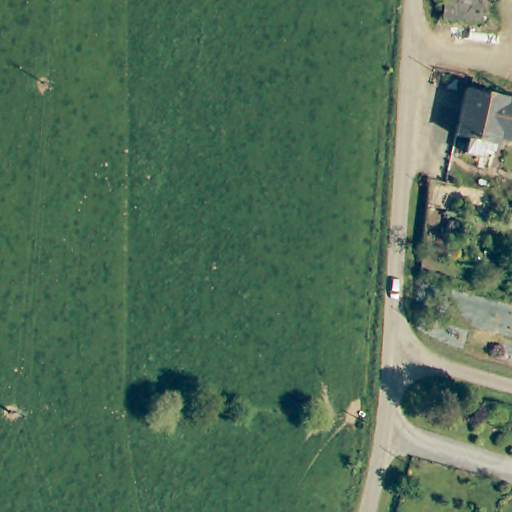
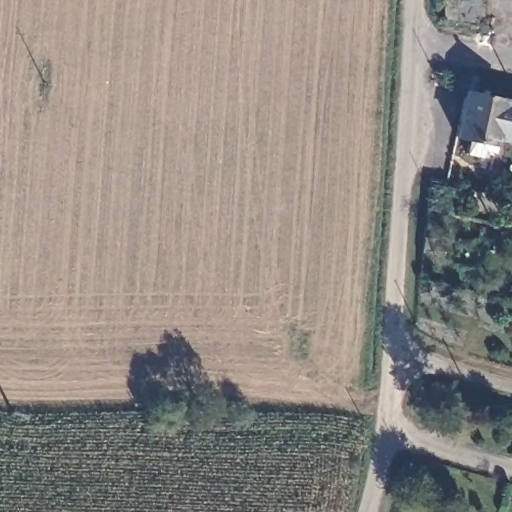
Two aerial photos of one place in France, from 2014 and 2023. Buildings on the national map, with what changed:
unchanged [(512,138),(496,135),(493,143),(454,134),(464,89),(512,100),(512,138)]

